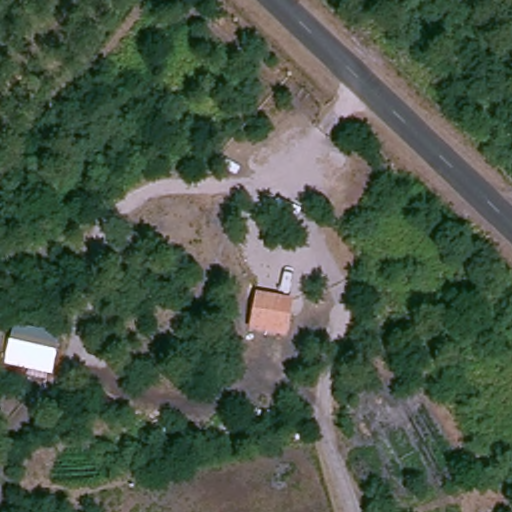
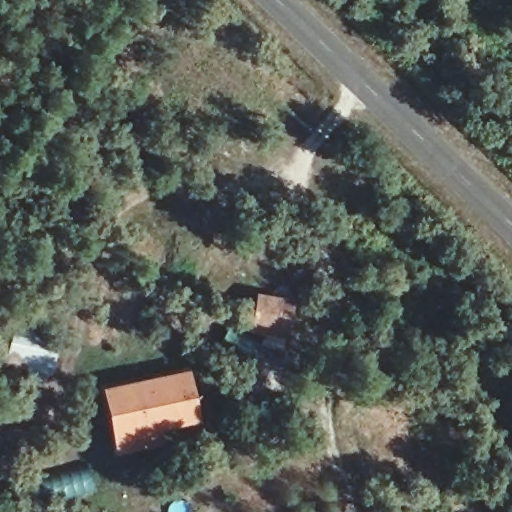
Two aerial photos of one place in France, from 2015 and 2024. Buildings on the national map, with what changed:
unchanged [(293,299),(287,335),(251,329),(256,290),(293,299)]
unchanged [(62,330),(52,370),(2,362),(12,320),(62,330)]
new [(188,367),(199,422),(163,429),(166,443),(116,453),(101,386),(188,367)]

